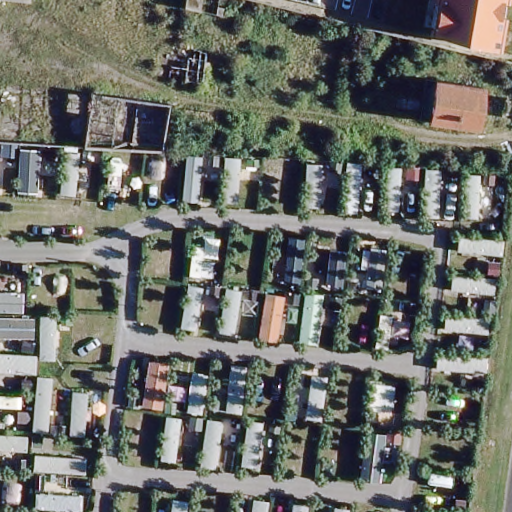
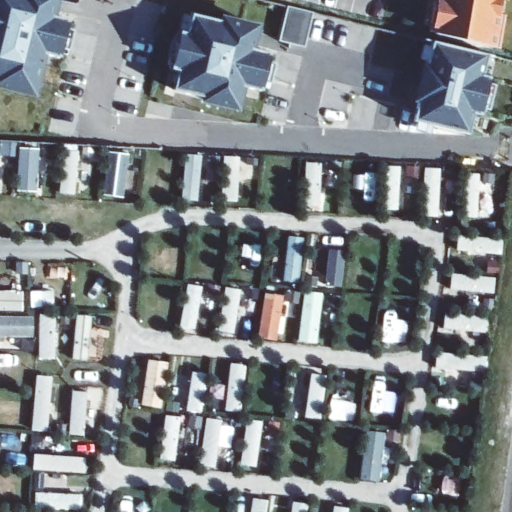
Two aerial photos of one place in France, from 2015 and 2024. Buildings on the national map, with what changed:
new [(57,16),(70,20),(68,29),(73,31),(68,50),(62,49),(60,56),(47,54),(36,96),(0,88),(0,0),(61,0),(57,16)]
demolished [(32,1),(26,0),(33,0),(32,1)]
unchanged [(497,51),(430,37),(436,0),(506,0),(497,51)]
new [(220,21),(222,15),(260,26),(255,49),(270,53),(268,63),(272,64),(268,83),(263,82),(262,91),(245,88),(239,112),(202,102),(204,97),(174,90),(180,71),(170,68),(180,32),(188,34),(192,15),(220,21)]
new [(486,60),(482,75),(490,78),(489,85),(493,86),(487,110),(482,108),(480,116),(472,113),(467,134),(413,122),(418,105),(412,103),(422,62),(427,64),(432,46),(486,60)]
demolished [(488,86),(483,126),(427,118),(432,78),(488,86)]

